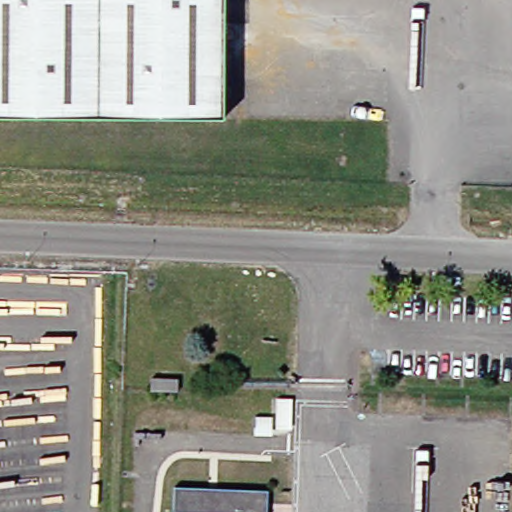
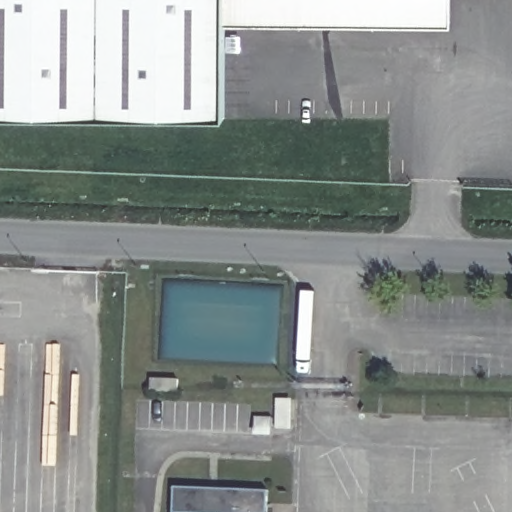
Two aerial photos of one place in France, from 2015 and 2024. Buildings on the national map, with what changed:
unchanged [(219,118),(0,115),(0,0),(220,0),(219,118)]
new [(220,0),(451,0),(451,26),(220,25),(220,0)]
unchanged [(158,393),(159,381),(187,382),(186,394),(158,393)]
unchanged [(188,512),(188,511),(189,484),(282,487),(281,512),(188,512)]

